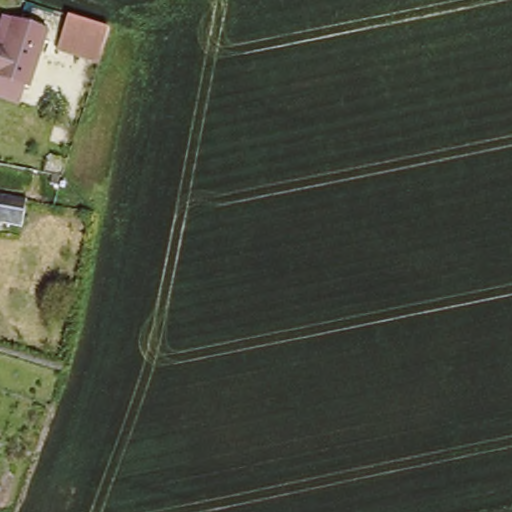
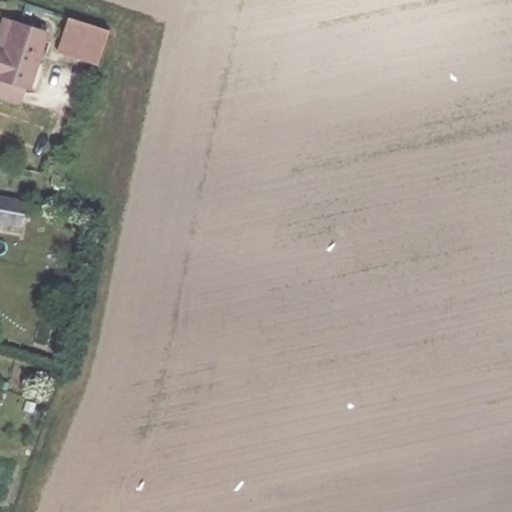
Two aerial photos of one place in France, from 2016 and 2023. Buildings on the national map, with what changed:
unchanged [(110,34),(97,69),(58,56),(70,21),(110,34)]
unchanged [(14,22),(55,35),(38,85),(0,72),(0,44),(7,46),(14,22)]
unchanged [(0,221),(0,196),(34,202),(30,227),(0,221)]

